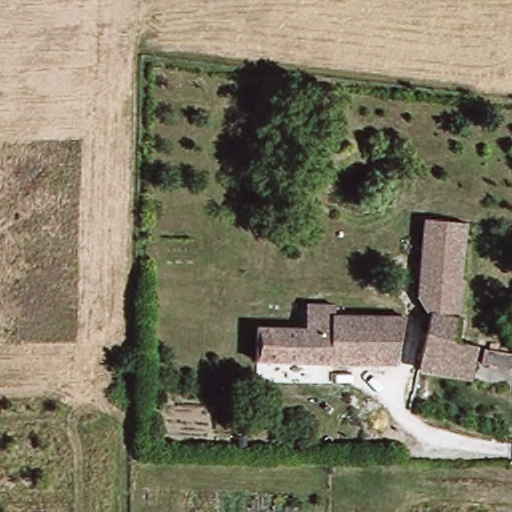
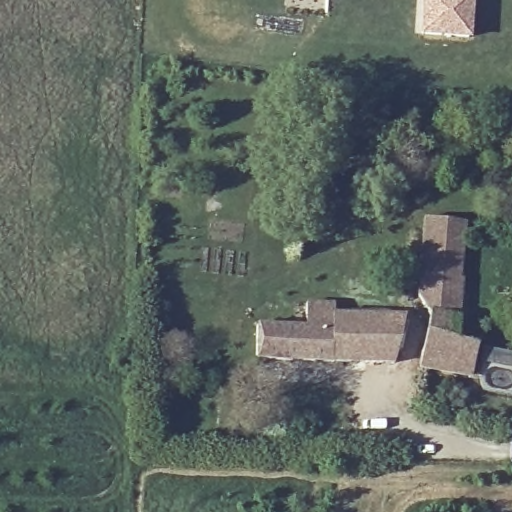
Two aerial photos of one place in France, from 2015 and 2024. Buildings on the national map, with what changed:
new [(471,40),(422,35),(425,0),(473,0),(471,40)]
unchanged [(451,335),(479,338),(476,361),(424,356),(428,311),(418,291),(426,211),(464,215),(451,335)]
unchanged [(300,324),(301,297),(335,299),(334,309),(405,311),(394,361),(256,358),(256,323),(300,324)]
unchanged [(512,351),(512,366),(492,364),(493,348),(512,351)]

